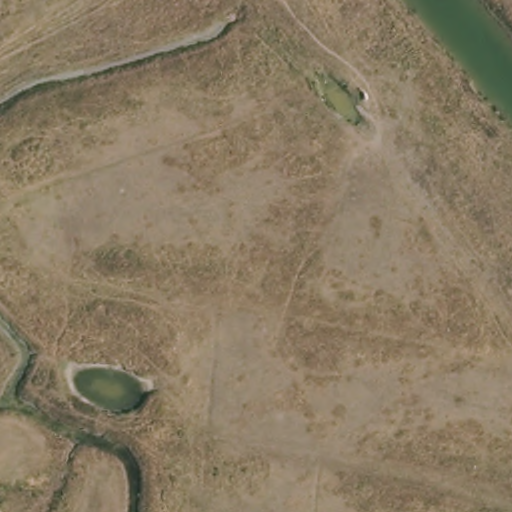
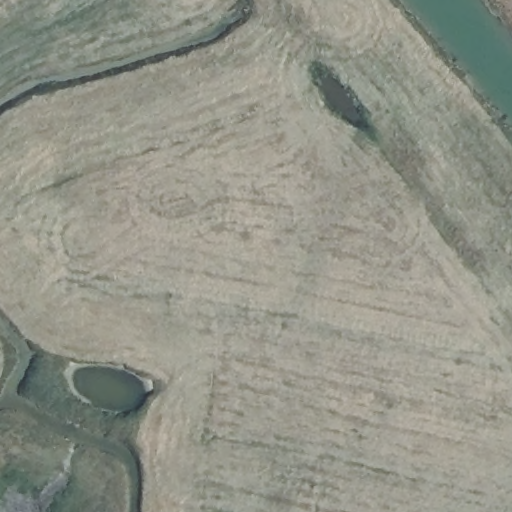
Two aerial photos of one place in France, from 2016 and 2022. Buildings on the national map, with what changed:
[]

